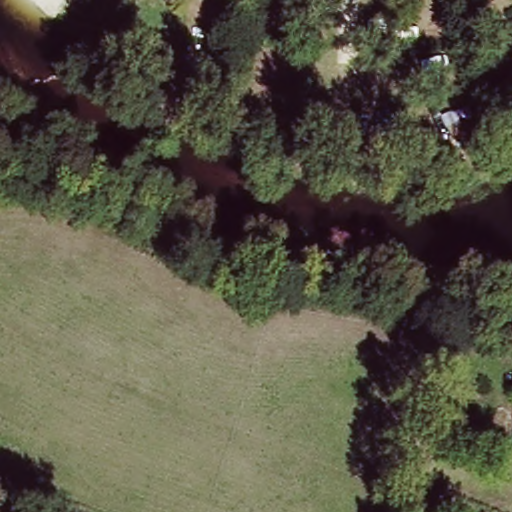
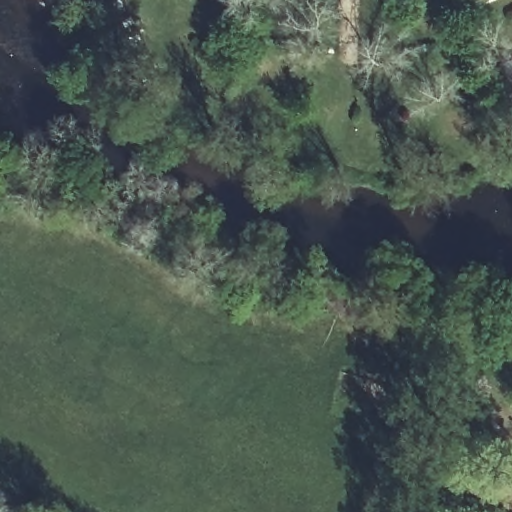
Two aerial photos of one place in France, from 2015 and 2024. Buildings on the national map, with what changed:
unchanged [(229,9),(207,7),(207,0),(230,0),(229,9)]

